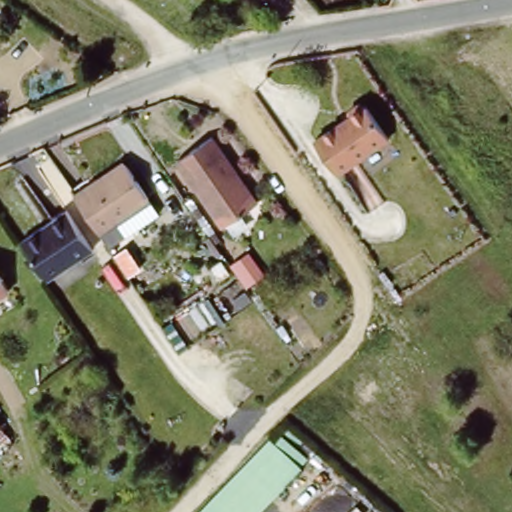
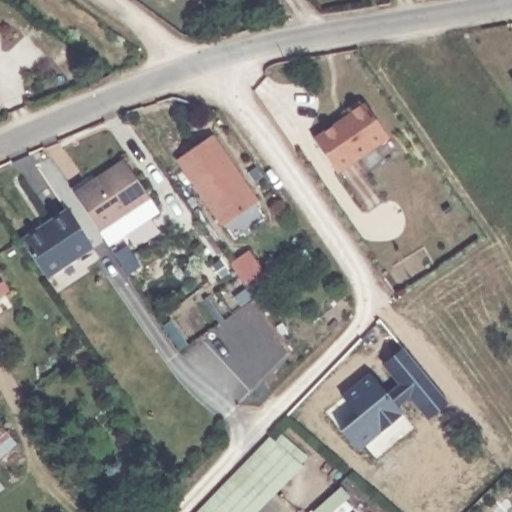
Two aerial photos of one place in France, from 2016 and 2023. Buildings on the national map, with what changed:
unchanged [(347,109),(361,101),(367,103),(390,137),(337,171),(313,136),(347,116),(347,109)]
unchanged [(174,158),(218,135),(259,204),(222,227),(174,158)]
unchanged [(102,230),(99,232),(74,194),(125,161),(160,214),(129,234),(112,245),(102,230)]
unchanged [(66,205),(92,244),(47,275),(21,236),(66,205)]
unchanged [(135,237),(139,243),(130,249),(126,243),(135,237)]
unchanged [(0,302),(0,286),(7,299),(0,302)]
new [(359,417),(343,398),(372,375),(389,396),(401,385),(384,364),(404,348),(449,404),(430,419),(410,396),(397,407),(402,413),(357,450),(341,431),(359,417)]
unchanged [(297,475),(260,512),(202,512),(267,446),(297,475)]

